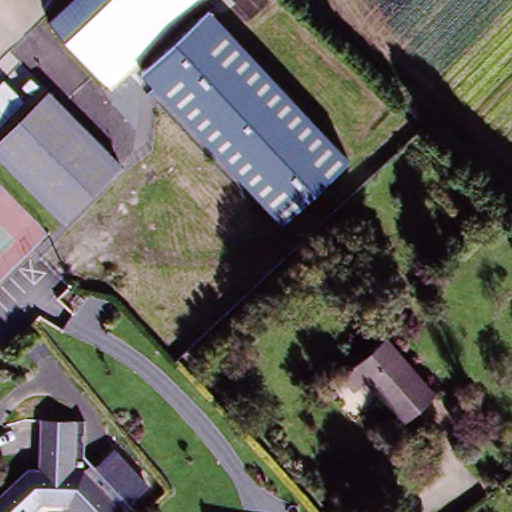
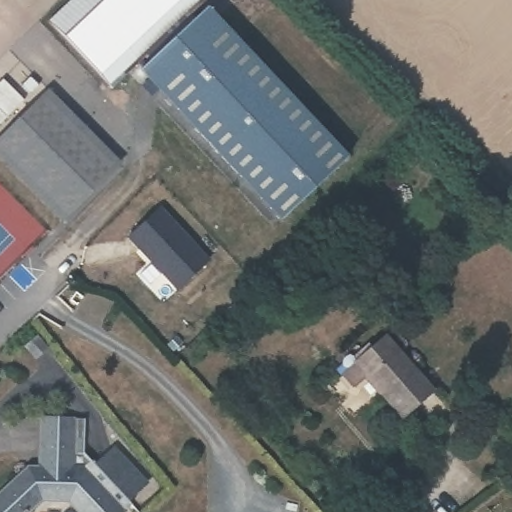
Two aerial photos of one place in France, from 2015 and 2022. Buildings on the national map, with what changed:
unchanged [(47,31),(77,0),(202,0),(111,94),(47,31)]
unchanged [(345,155),(277,218),(140,72),(207,4),(345,155)]
new [(0,80),(1,79),(23,99),(0,124),(0,80)]
unchanged [(120,165),(62,220),(0,161),(0,147),(54,97),(120,165)]
new [(209,259),(177,290),(129,237),(160,208),(209,259)]
unchanged [(383,343),(432,393),(402,423),(351,374),(383,343)]
unchanged [(40,479),(44,424),(87,426),(86,461),(131,512),(0,512),(0,494),(21,478),(40,479)]

